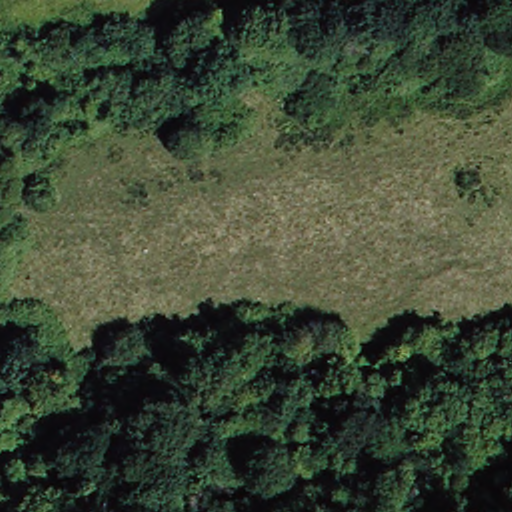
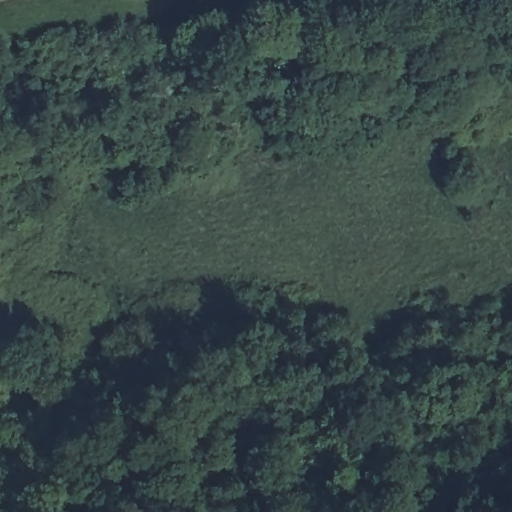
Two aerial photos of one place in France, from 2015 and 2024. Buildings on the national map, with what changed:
[]

